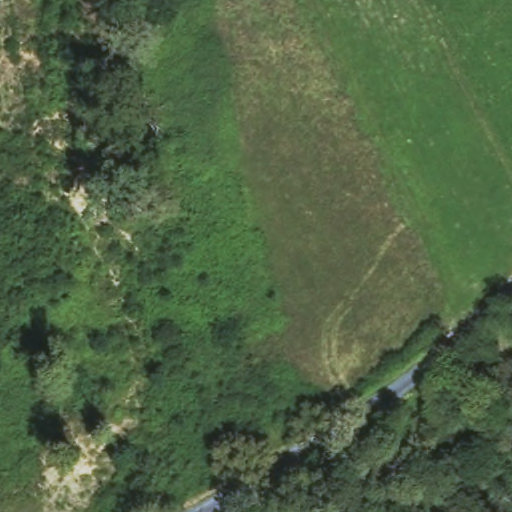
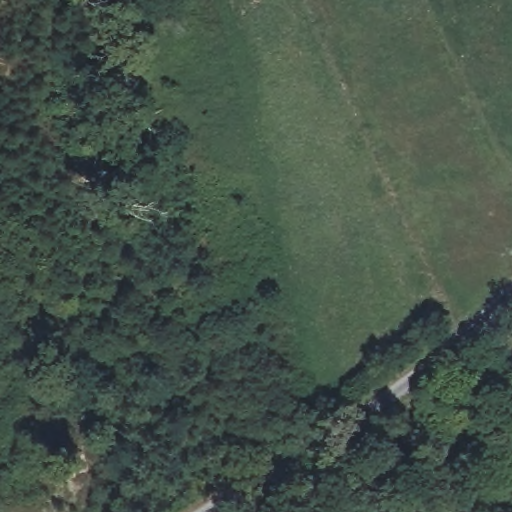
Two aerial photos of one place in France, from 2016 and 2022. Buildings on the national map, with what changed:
unchanged [(144,20),(131,0),(174,0),(144,20)]

